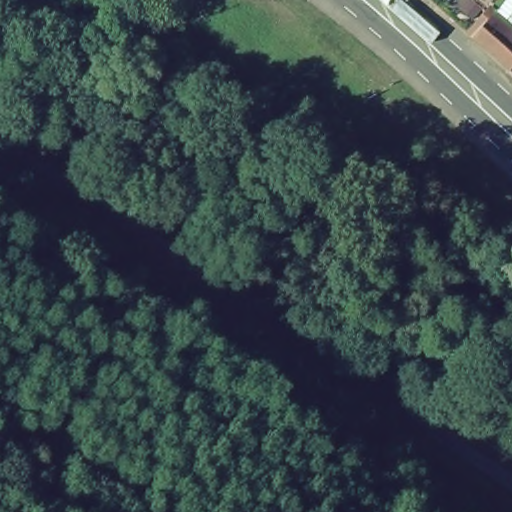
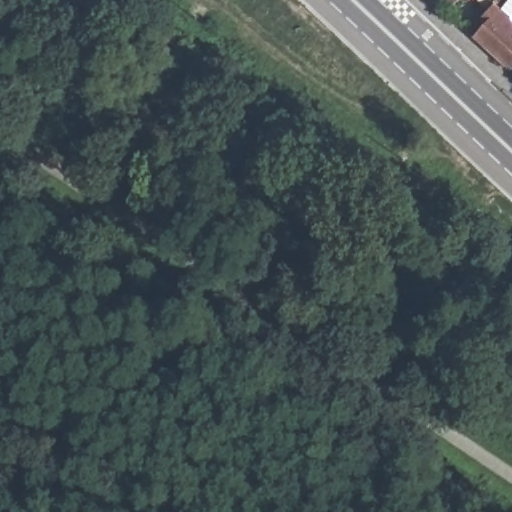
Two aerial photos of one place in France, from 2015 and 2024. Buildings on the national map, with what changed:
unchanged [(507,0),(512,0),(512,20),(499,7),(507,0)]
unchanged [(512,63),(509,68),(469,35),(499,7),(512,20),(512,63)]

